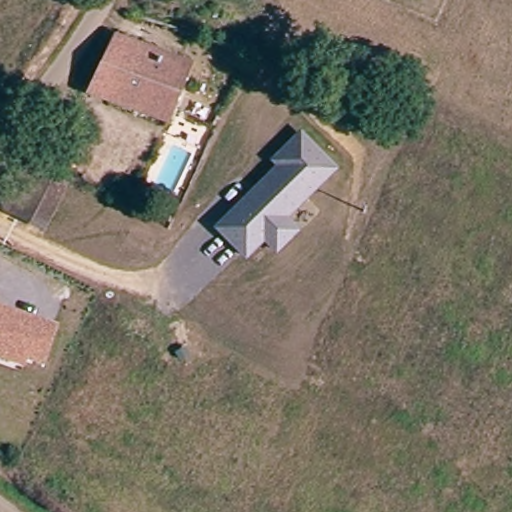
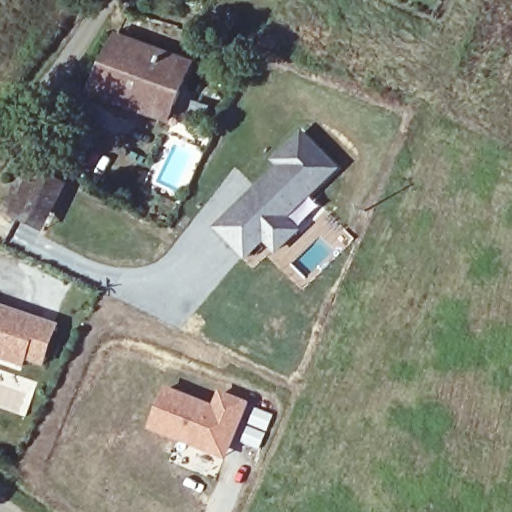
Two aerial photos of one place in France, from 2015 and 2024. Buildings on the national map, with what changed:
unchanged [(117,35),(183,58),(164,117),(94,93),(117,35)]
new [(218,40),(258,52),(236,95),(224,89),(233,68),(211,56),(218,40)]
unchanged [(213,227),(277,165),(272,157),(302,128),(340,167),(288,217),(302,229),(278,254),(264,242),(245,260),(213,227)]
unchanged [(0,213),(0,210),(22,165),(65,187),(41,232),(0,213)]
unchanged [(58,321),(45,368),(0,356),(0,304),(58,321)]
new [(211,404),(217,390),(250,401),(226,460),(147,432),(164,386),(211,404)]

